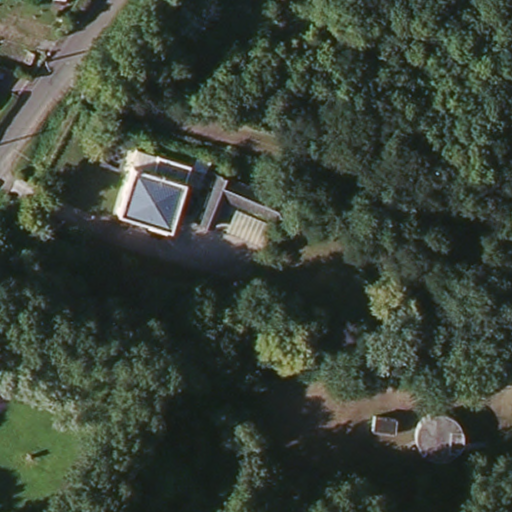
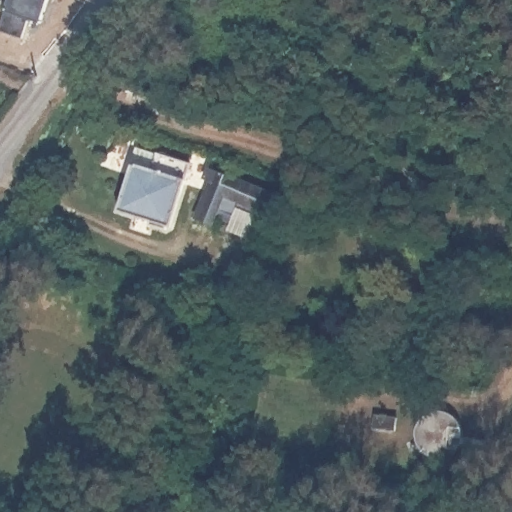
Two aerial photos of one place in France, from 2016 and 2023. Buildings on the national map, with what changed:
new [(50,0),(43,22),(30,19),(25,37),(1,31),(10,0),(50,0)]
unchanged [(183,180),(162,247),(153,244),(150,250),(141,246),(137,251),(126,249),(123,242),(125,232),(110,226),(123,182),(114,179),(118,169),(127,172),(132,164),(183,180)]
unchanged [(276,217),(239,202),(227,232),(194,222),(206,187),(199,183),(205,169),(284,197),(276,217)]
unchanged [(392,433),(367,432),(368,417),(392,418),(392,433)]

